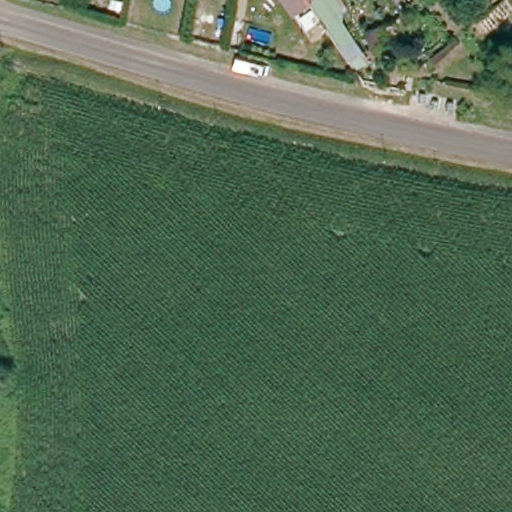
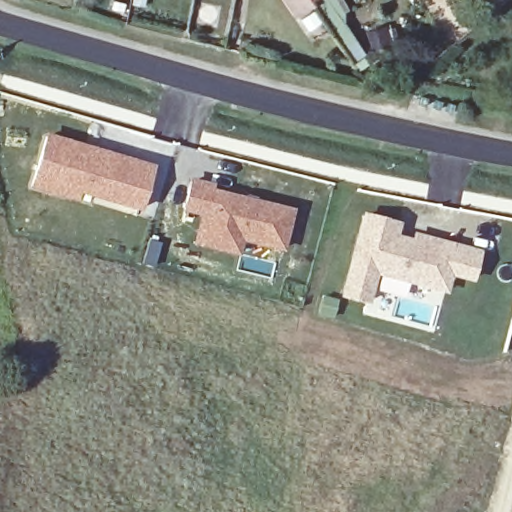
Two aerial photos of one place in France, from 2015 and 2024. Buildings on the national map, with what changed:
unchanged [(117,11),(119,0),(124,0),(122,12),(117,11)]
unchanged [(339,22),(359,52),(347,60),(308,3),(292,14),(284,0),(335,0),(341,12),(339,22)]
unchanged [(391,45),(372,52),(365,32),(385,26),(391,45)]
new [(153,165),(140,212),(79,193),(76,202),(29,188),(45,132),(153,165)]
new [(213,184),(212,190),(293,209),(283,252),(241,242),(237,257),(190,246),(198,215),(181,211),(188,177),(213,184)]
new [(401,223),(397,235),(411,239),(412,232),(481,251),(473,282),(451,277),(447,295),(377,276),(368,305),(338,298),(362,212),(401,223)]

